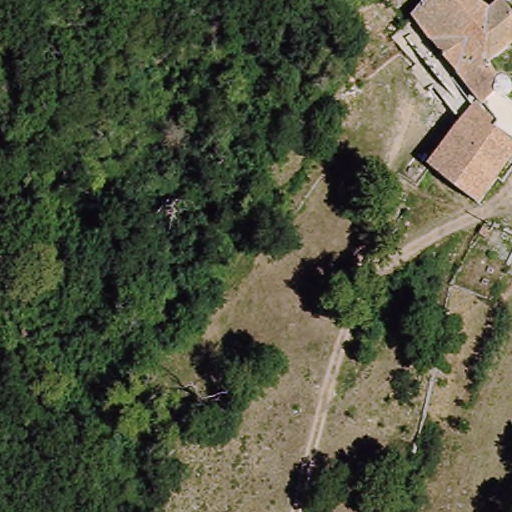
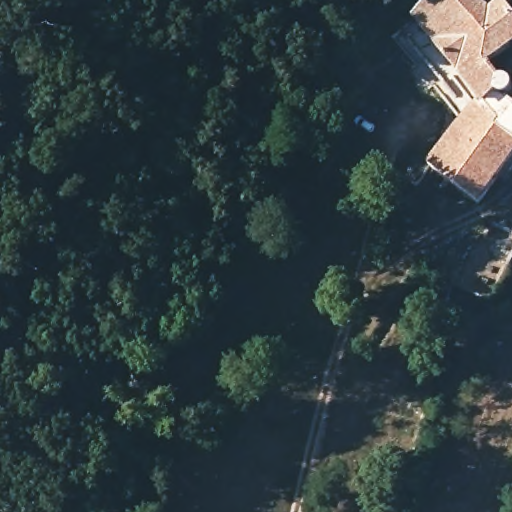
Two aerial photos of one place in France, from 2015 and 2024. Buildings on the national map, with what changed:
unchanged [(419,10),(417,0),(465,0),(497,22),(510,11),(512,12),(512,58),(504,70),(512,76),(512,88),(512,89),(512,157),(470,207),(426,167),(483,107),(438,62),(427,72),(410,60),(395,34),(419,10)]
unchanged [(510,242),(490,276),(455,273),(485,232),(510,242)]

